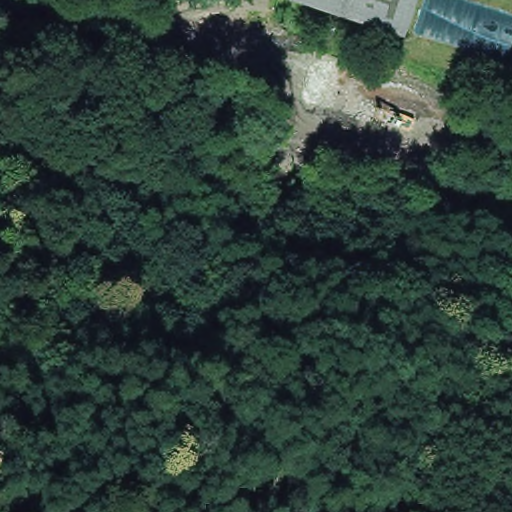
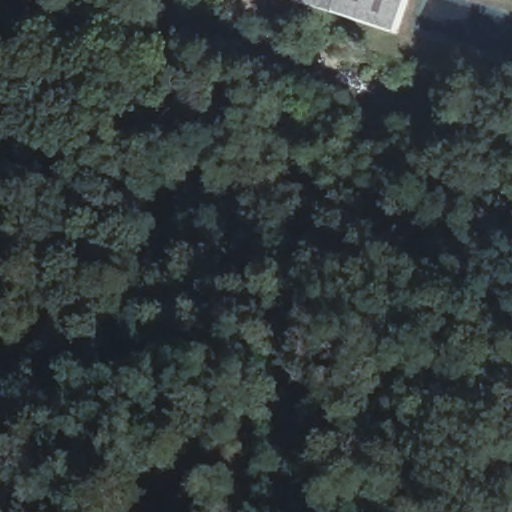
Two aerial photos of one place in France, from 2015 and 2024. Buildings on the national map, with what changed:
unchanged [(397,32),(300,0),(408,0),(397,32)]
unchanged [(512,221),(512,230),(510,242),(468,235),(450,232),(453,212),(512,221)]

